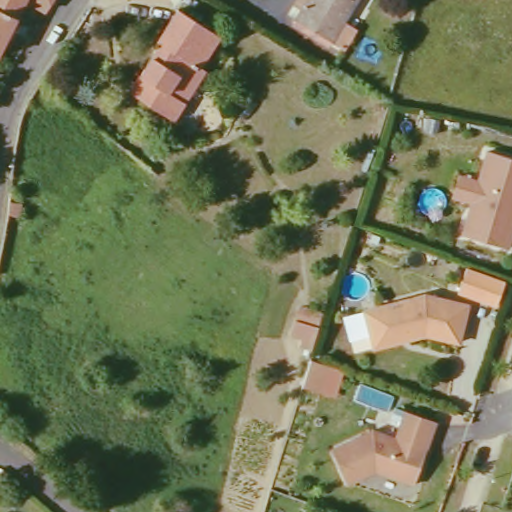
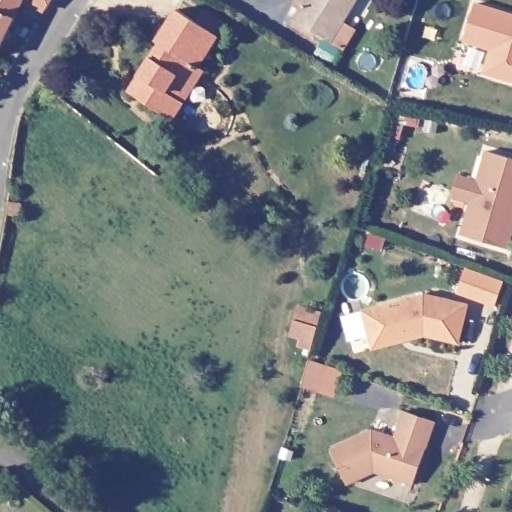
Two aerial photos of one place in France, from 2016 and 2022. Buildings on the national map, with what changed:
unchanged [(0,0),(61,0),(54,12),(28,7),(5,59),(0,57),(0,0)]
unchanged [(353,41),(342,34),(306,11),(313,0),(363,0),(355,14),(367,20),(353,41)]
new [(483,75),(491,51),(463,42),(475,4),(512,15),(512,83),(483,75)]
unchanged [(147,76),(167,45),(163,42),(184,10),(225,35),(205,66),(213,72),(193,102),(181,122),(147,100),(136,93),(147,76)]
unchanged [(467,240),(492,155),(512,161),(512,254),(467,240)]
unchanged [(488,294),(475,288),(478,276),(492,282),(488,294)]
unchanged [(379,338),(374,306),(437,296),(475,308),(463,347),(432,336),(417,338),(380,344),(379,338)]
unchanged [(312,350),(300,347),(303,340),(292,336),(301,308),(322,315),(312,350)]
unchanged [(316,395),(301,387),(310,359),(325,367),(316,395)]
unchanged [(380,429),(400,438),(411,411),(441,423),(418,486),(380,472),(352,486),(335,452),(380,429)]

